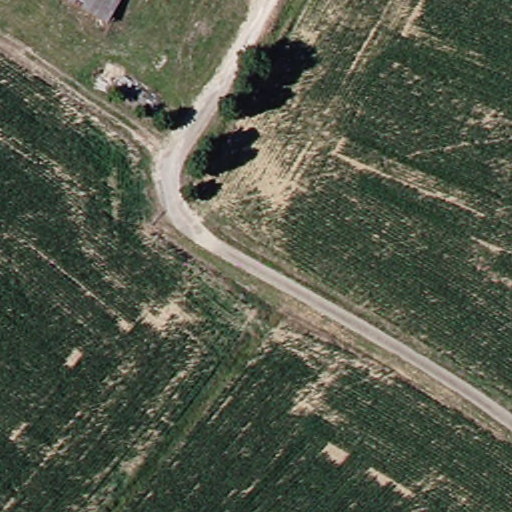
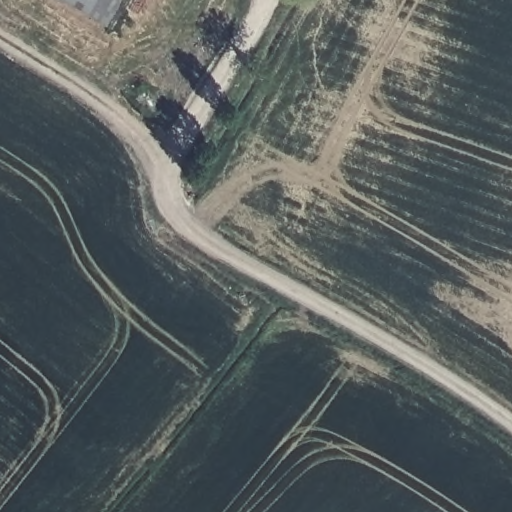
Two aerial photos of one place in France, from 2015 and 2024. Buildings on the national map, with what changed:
unchanged [(65,0),(108,0),(97,18),(65,0)]

